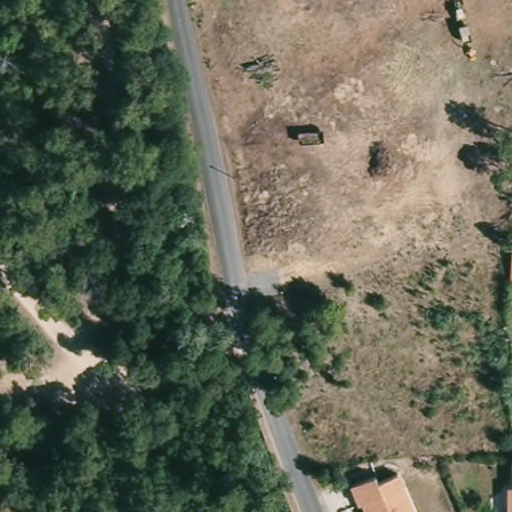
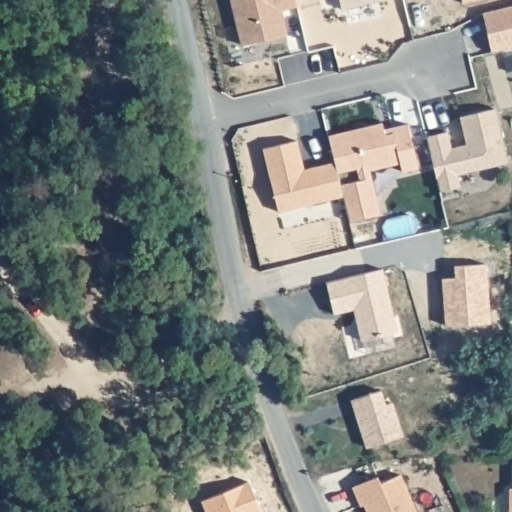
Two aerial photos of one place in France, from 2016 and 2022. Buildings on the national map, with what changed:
new [(279,8),(285,34),(241,44),(231,0),(295,0),(296,4),(279,8)]
new [(338,0),(376,0),(341,9),(338,0)]
new [(460,0),(472,0),(461,2),(460,0)]
new [(512,6),(512,47),(491,52),(482,13),(512,6)]
new [(446,131),(450,149),(465,145),(459,117),(493,109),(506,162),(456,174),(459,186),(438,191),(425,136),(446,131)]
new [(383,130),(391,127),(406,124),(417,167),(401,171),(399,162),(368,170),(378,214),(348,221),(342,196),(339,185),(359,180),(356,167),(336,172),(333,162),(327,135),(381,123),(383,130)]
new [(296,140),(302,169),(333,162),(336,172),(339,185),(342,196),(277,211),(262,148),(296,140)]
new [(333,314),(326,282),(381,269),(397,331),(361,340),(357,323),(353,309),(333,314)]
new [(380,390),(385,405),(391,402),(402,435),(366,447),(351,400),(380,390)]
unchanged [(376,475),(380,483),(400,473),(416,512),(364,512),(353,487),(376,475)]
unchanged [(509,493),(512,493),(512,512),(508,512),(509,493)]

